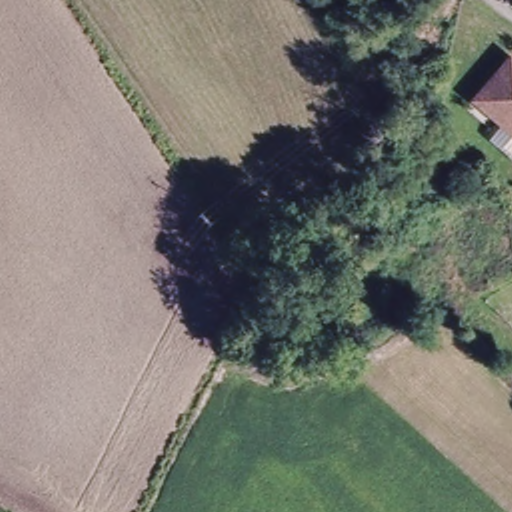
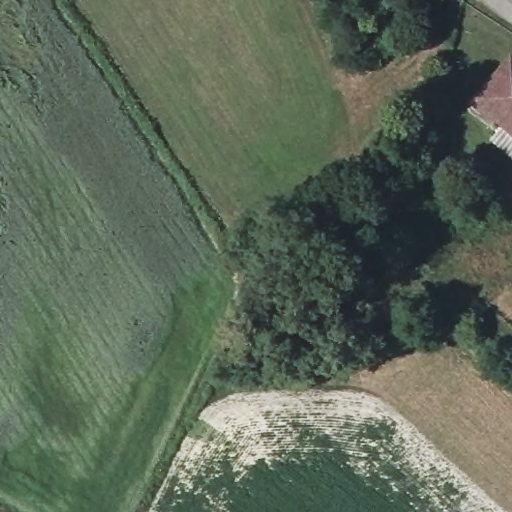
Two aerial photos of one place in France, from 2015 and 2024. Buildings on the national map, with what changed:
unchanged [(512,132),(488,114),(471,101),(478,91),(501,61),(512,69),(512,132)]

